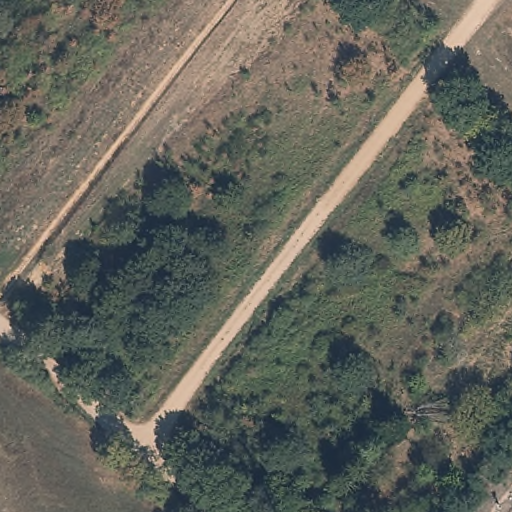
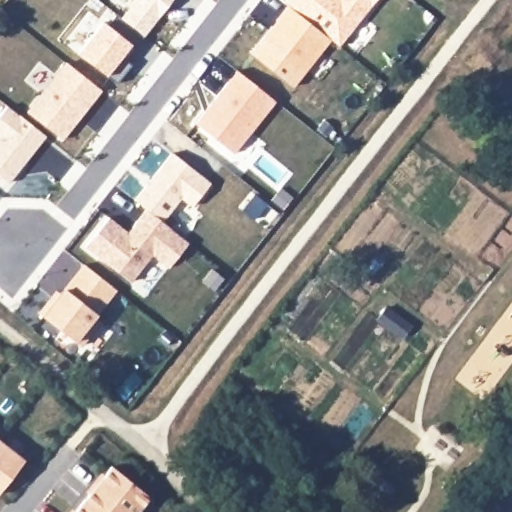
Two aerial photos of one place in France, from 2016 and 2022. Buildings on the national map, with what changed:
new [(137,33),(115,15),(126,0),(164,0),(137,33)]
new [(271,26),(274,28),(279,23),(276,20),(287,7),(330,40),(293,87),(250,53),(271,26)]
new [(97,19),(101,22),(110,11),(115,15),(137,33),(128,45),(124,42),(115,53),(125,62),(110,80),(72,50),(97,19)]
new [(61,60),(96,87),(57,136),(23,109),(61,60)]
new [(237,69),(276,101),(233,155),(195,125),(237,69)]
new [(6,106),(44,136),(8,183),(0,177),(0,115),(6,106)]
new [(172,152),(212,183),(193,207),(183,199),(163,224),(145,210),(135,199),(172,152)]
new [(108,218),(127,233),(145,210),(188,243),(168,268),(152,255),(130,282),(85,247),(108,218)]
new [(56,292),(60,295),(83,265),(114,290),(93,317),(99,322),(80,346),(38,314),(56,292)]
new [(24,458),(0,491),(0,440),(24,458)]
unchanged [(148,496),(136,512),(71,512),(108,464),(148,496)]

